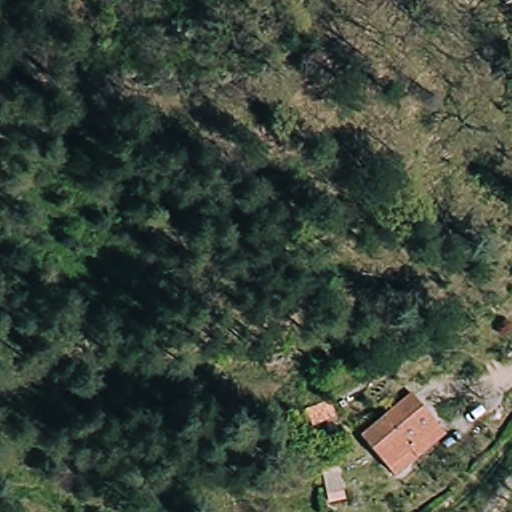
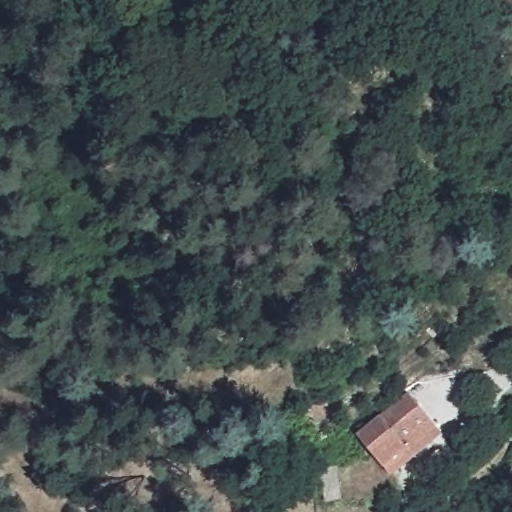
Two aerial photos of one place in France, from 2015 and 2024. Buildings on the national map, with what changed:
unchanged [(412,458),(393,476),(358,438),(410,391),(436,420),(444,428),(412,458)]
unchanged [(321,423),(312,406),(335,395),(341,414),(321,423)]

